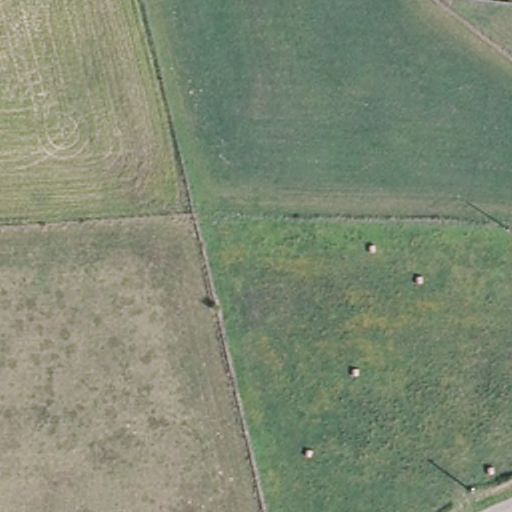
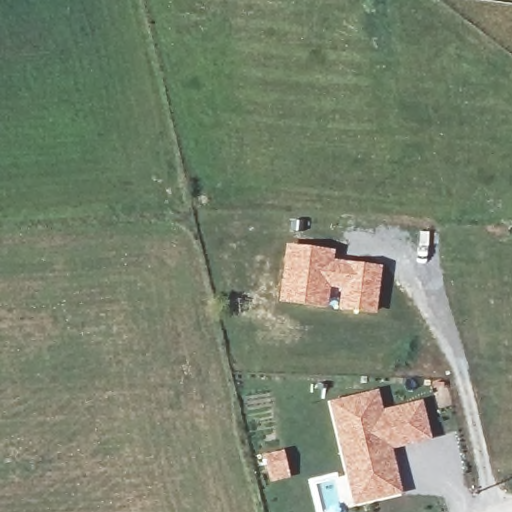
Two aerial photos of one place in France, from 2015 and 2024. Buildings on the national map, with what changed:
new [(287,244),(336,249),(335,259),(383,265),(377,314),(338,308),(340,289),(331,289),(328,308),(279,302),(287,244)]
new [(379,389),(384,408),(423,399),(433,439),(393,450),(404,494),(353,506),(328,401),(379,389)]
new [(285,449),(291,478),(270,482),(264,454),(285,449)]

